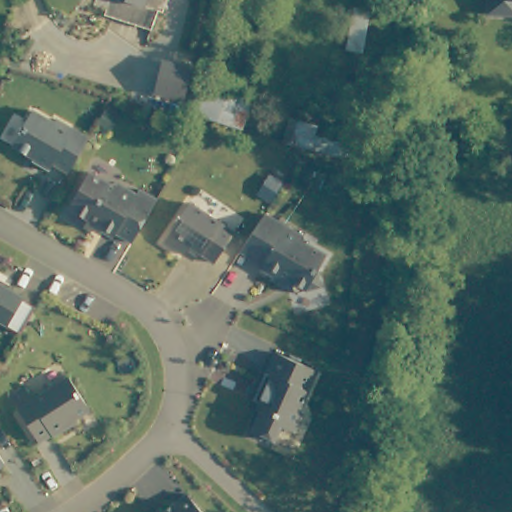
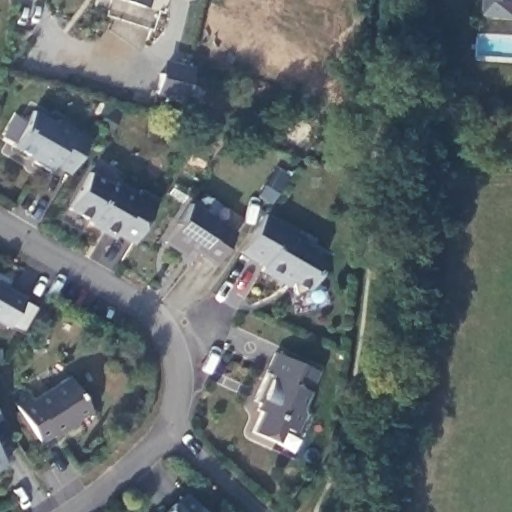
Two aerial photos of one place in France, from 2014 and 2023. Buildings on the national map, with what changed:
unchanged [(157,12),(117,0),(161,0),(157,12)]
unchanged [(487,12),(487,0),(512,0),(512,12),(487,12)]
unchanged [(175,99),(146,91),(151,72),(160,75),(163,62),(183,67),(175,99)]
unchanged [(201,84),(252,100),(242,123),(192,111),(199,84),(201,84)]
unchanged [(76,151),(62,176),(46,166),(42,174),(26,165),(27,161),(6,149),(27,113),(47,125),(50,121),(82,141),(76,151)]
unchanged [(134,235),(129,245),(112,235),(112,236),(65,210),(86,174),(107,186),(114,184),(134,195),(137,191),(154,201),(134,235)]
unchanged [(215,267),(190,251),(184,259),(165,246),(191,207),(235,237),(215,267)]
unchanged [(326,255),(316,272),(320,286),(294,293),(291,281),(282,276),(279,280),(261,270),(263,265),(240,251),(249,239),(265,214),(303,236),(305,243),(326,255)]
unchanged [(0,329),(0,293),(16,303),(0,329)]
unchanged [(300,411),(302,418),(294,437),(280,430),(273,446),(251,435),(260,415),(256,413),(258,407),(257,406),(261,395),(257,394),(275,356),(317,376),(300,411)]
unchanged [(67,431),(69,433),(54,442),(52,440),(40,448),(12,403),(27,395),(34,405),(71,383),(91,417),(67,431)]
unchanged [(166,512),(169,509),(170,510),(181,500),(192,512),(166,512)]

